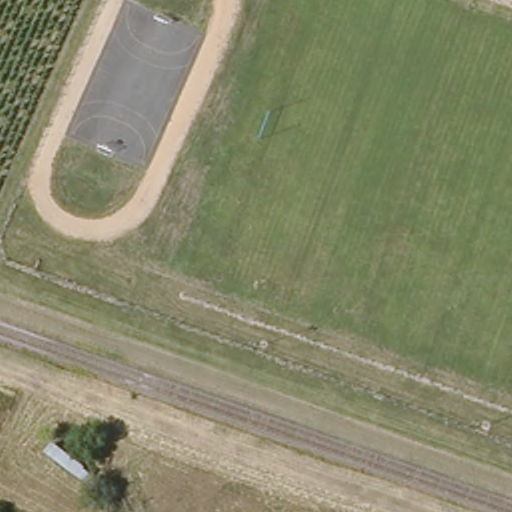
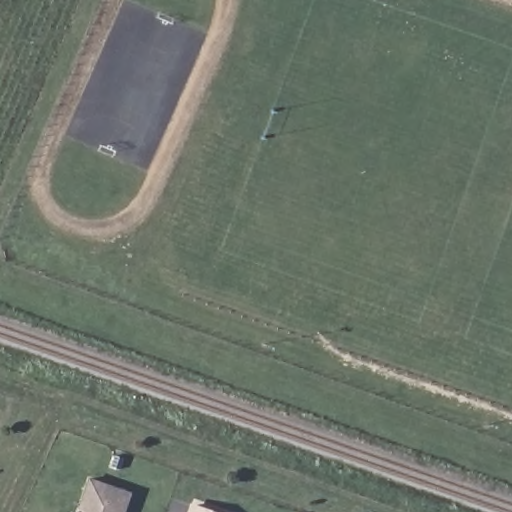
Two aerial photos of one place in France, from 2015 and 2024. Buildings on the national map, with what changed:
new [(92,482),(134,497),(128,512),(82,512),(92,482)]
new [(190,502),(218,512),(186,512),(190,502)]

